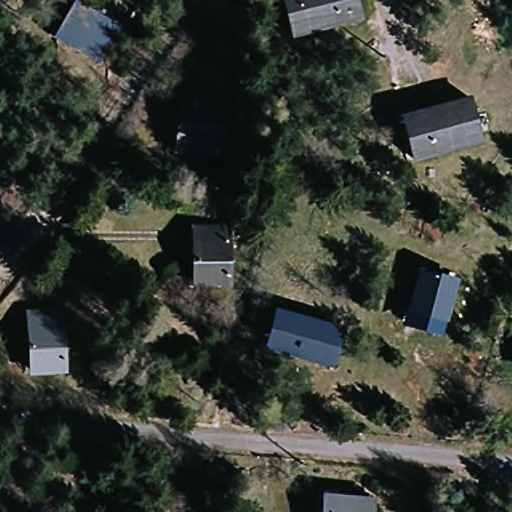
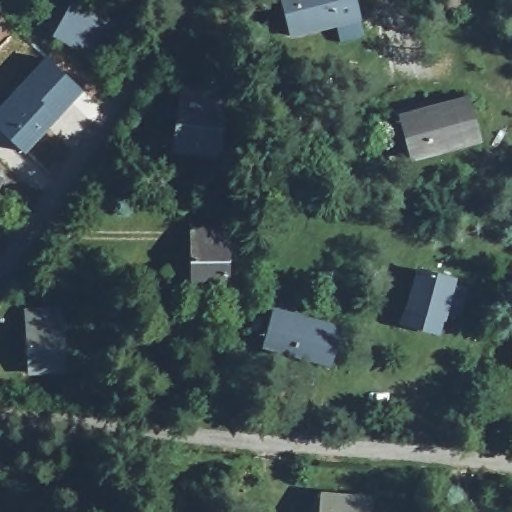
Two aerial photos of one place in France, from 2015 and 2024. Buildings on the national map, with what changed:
unchanged [(85,52),(81,57),(53,37),(80,0),(84,0),(125,28),(101,63),(85,52)]
unchanged [(293,33),(284,0),(357,0),(361,15),(293,33)]
new [(0,131),(0,106),(46,56),(84,90),(25,155),(0,131)]
unchanged [(181,147),(187,100),(198,101),(200,88),(230,92),(221,154),(181,147)]
unchanged [(483,142),(416,158),(407,111),(473,96),(483,142)]
unchanged [(0,167),(11,175),(0,191),(0,167)]
unchanged [(230,281),(198,280),(198,226),(231,226),(230,281)]
unchanged [(450,316),(414,307),(402,305),(412,266),(424,270),(459,278),(450,316)]
unchanged [(336,365),(265,346),(273,313),(345,330),(336,365)]
unchanged [(68,371),(34,372),(31,317),(65,316),(68,371)]
unchanged [(373,512),(325,512),(326,496),(336,497),(375,501),(373,512)]

